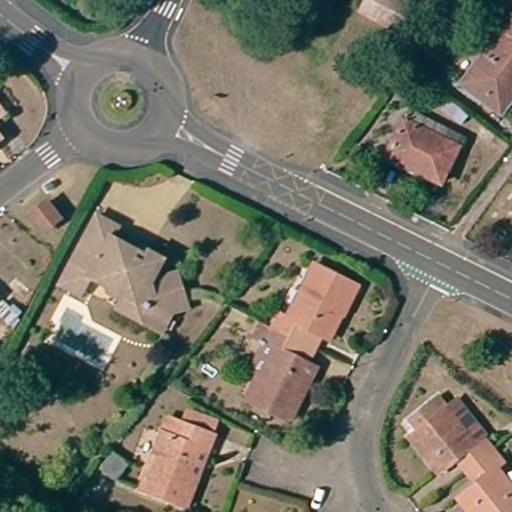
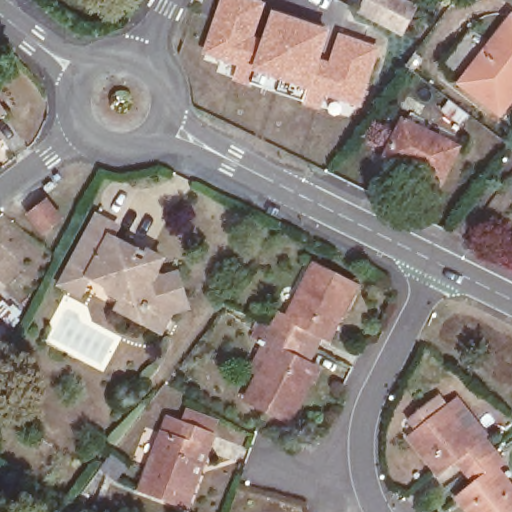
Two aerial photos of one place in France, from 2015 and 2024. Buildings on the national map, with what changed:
new [(349,116),(217,73),(220,65),(203,59),(224,0),(247,0),(261,5),(251,38),(264,42),(274,15),(326,32),(316,62),(332,66),(341,37),(377,49),(359,104),(349,116)]
unchanged [(366,0),(399,0),(413,7),(399,36),(358,15),(366,0)]
unchanged [(512,100),(505,109),(466,81),(512,21),(512,100)]
unchanged [(7,110),(0,116),(0,101),(7,110)]
unchanged [(463,139),(446,176),(392,148),(409,112),(463,139)]
unchanged [(0,138),(0,123),(7,132),(0,138)]
unchanged [(25,216),(40,202),(54,219),(39,232),(25,216)]
unchanged [(88,272),(79,288),(61,278),(69,262),(98,212),(116,221),(110,237),(135,250),(138,245),(146,250),(157,256),(150,268),(158,277),(175,272),(185,303),(165,310),(155,328),(113,306),(118,295),(107,289),(109,283),(88,272)]
unchanged [(285,308),(294,312),(321,260),(364,281),(348,312),(341,309),(322,346),(276,322),(285,308)]
unchanged [(7,292),(20,304),(7,317),(0,310),(0,299),(7,292)]
unchanged [(309,390),(293,420),(249,397),(263,372),(255,367),(267,341),(257,336),(266,317),(276,322),(322,346),(312,364),(320,368),(309,390)]
unchanged [(466,451),(444,467),(417,432),(428,423),(419,410),(446,389),(456,399),(467,392),(494,427),(491,431),(499,442),(475,462),(466,451)]
unchanged [(189,500),(145,484),(169,415),(182,420),(188,404),(219,416),(214,431),(209,448),(200,447),(192,469),(199,473),(189,500)]
unchanged [(462,490),(483,472),(475,462),(499,442),(508,452),(499,461),(512,478),(512,509),(507,512),(479,512),(462,490)]
unchanged [(111,487),(95,476),(106,462),(122,473),(111,487)]

